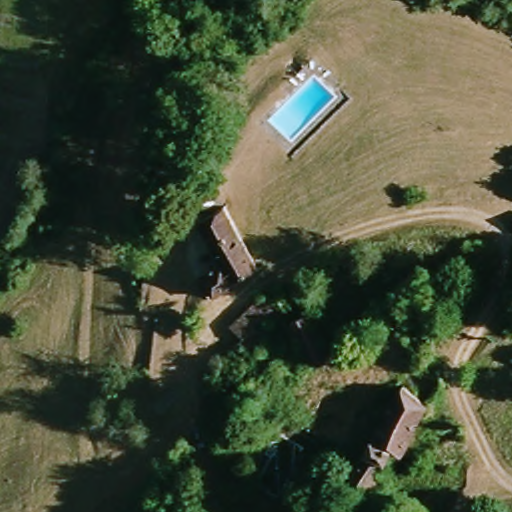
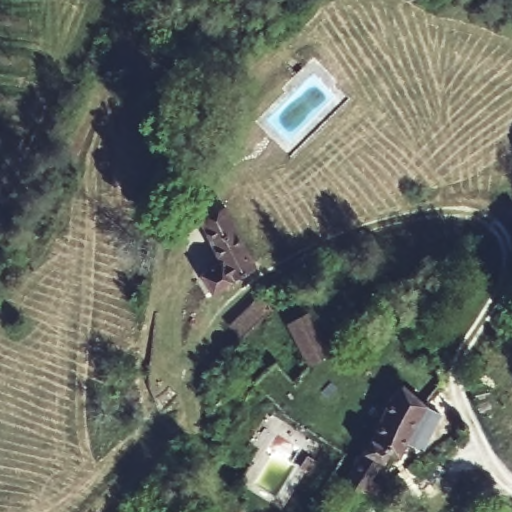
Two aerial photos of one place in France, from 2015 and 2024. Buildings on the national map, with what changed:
unchanged [(217,294),(199,275),(222,257),(198,215),(221,206),(255,263),(244,269),(217,294)]
unchanged [(305,360),(288,321),(318,314),(330,352),(305,360)]
unchanged [(388,475),(383,487),(352,475),(365,441),(371,442),(400,382),(425,393),(401,442),(393,440),(380,472),(388,475)]

